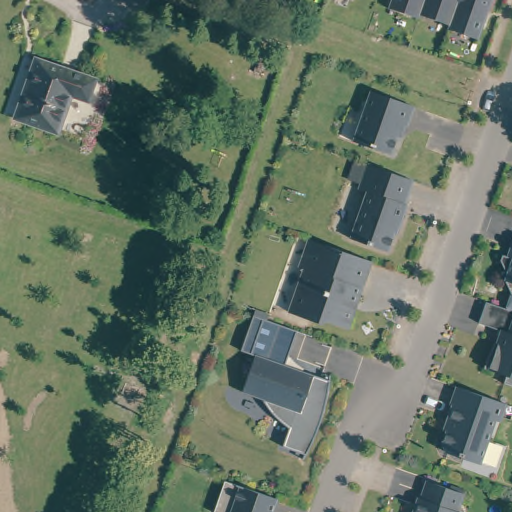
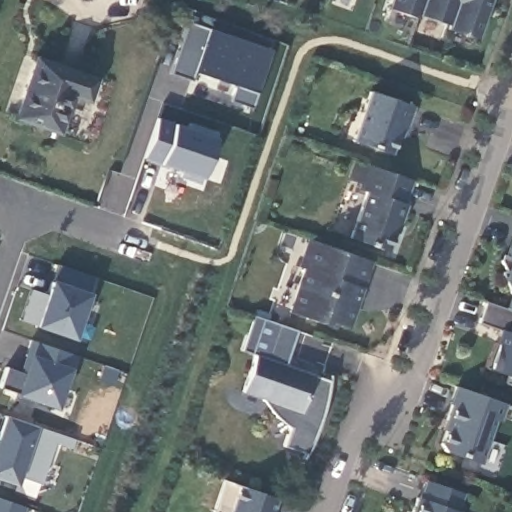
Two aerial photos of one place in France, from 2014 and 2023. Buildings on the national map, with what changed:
unchanged [(390,3),(391,0),(424,0),(421,9),(420,13),(390,3)]
unchanged [(449,19),(421,9),(424,0),(459,0),(451,25),(448,24),(449,19)]
unchanged [(489,0),(478,34),(451,25),(459,0),(489,0)]
new [(181,74),(159,66),(178,14),(263,44),(243,102),(221,94),(226,80),(184,65),(181,74)]
unchanged [(41,55),(99,74),(91,95),(75,89),(62,126),(21,113),(41,55)]
unchanged [(411,105),(406,126),(398,124),(388,153),(351,140),(367,90),(411,105)]
new [(161,118),(189,127),(191,121),(220,131),(201,184),(181,177),(182,170),(147,158),(161,118)]
unchanged [(400,206),(404,207),(399,224),(395,223),(385,253),(348,240),(364,194),(355,191),(364,166),(409,181),(400,206)]
unchanged [(354,303),(349,301),(347,307),(352,308),(345,328),(327,322),(321,325),(289,314),(301,273),(300,268),(309,239),(368,259),(354,303)]
unchanged [(506,277),(509,275),(504,263),(510,260),(512,253),(512,291),(506,277)]
new [(32,291),(48,295),(57,266),(94,277),(74,337),(22,320),(32,291)]
unchanged [(504,383),(507,376),(485,368),(492,346),(499,340),(503,330),(478,321),(485,301),(512,309),(512,386),(504,383)]
unchanged [(302,365),(300,371),(328,381),(324,402),(316,427),(301,457),(278,448),(285,429),(268,417),(258,399),(238,393),(252,356),(247,354),(237,349),(250,315),(259,318),(295,330),(288,350),(302,365)]
new [(24,353),(20,352),(25,335),(70,351),(59,384),(55,383),(48,402),(31,396),(30,399),(10,392),(11,389),(0,385),(0,363),(18,369),(24,353)]
unchanged [(499,418),(493,417),(478,461),(443,451),(439,444),(449,404),(447,402),(454,385),(504,402),(499,418)]
new [(65,444),(48,438),(34,479),(0,467),(0,411),(68,435),(65,444)]
unchanged [(418,495),(423,492),(428,479),(466,491),(461,509),(461,512),(412,512),(418,495)]
unchanged [(271,512),(213,512),(212,512),(223,480),(276,498),(271,512)]
new [(15,512),(0,512),(0,496),(19,503),(15,512)]

